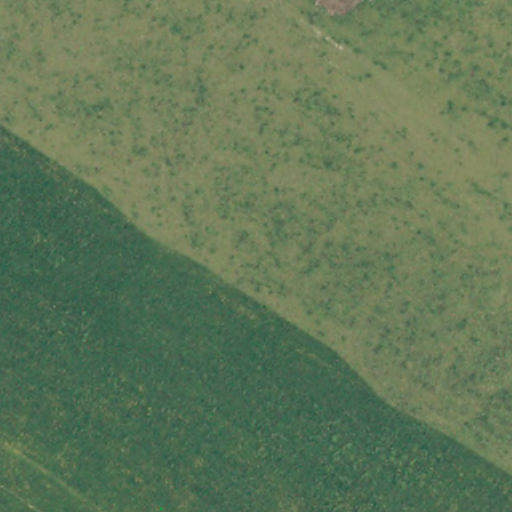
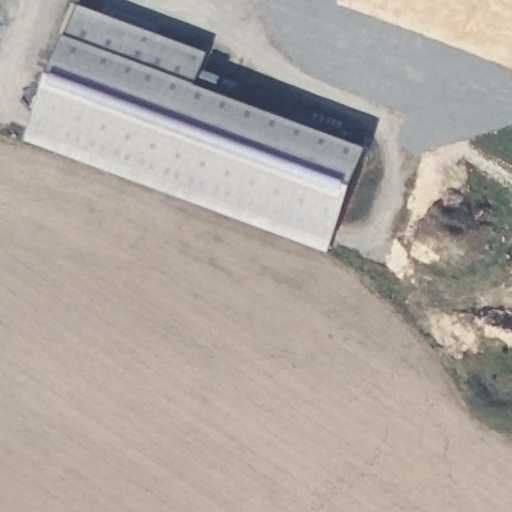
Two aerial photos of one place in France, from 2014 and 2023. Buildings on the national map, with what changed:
new [(210,54),(199,85),(371,149),(333,253),(30,141),(68,35),(71,35),(82,5),(210,54)]

